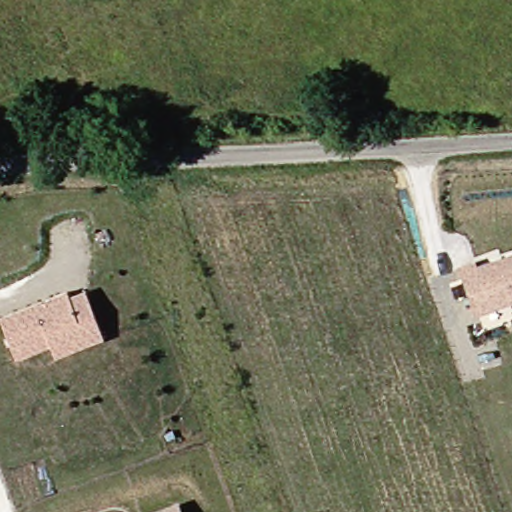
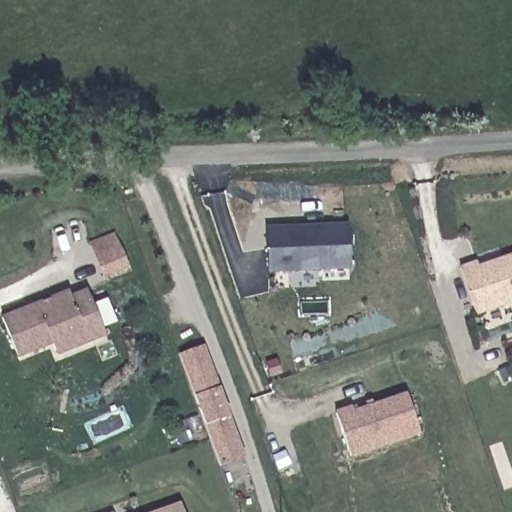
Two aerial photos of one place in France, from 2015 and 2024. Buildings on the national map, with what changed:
new [(312,228),(351,226),(352,269),(273,272),(271,229),(297,228),(312,228)]
new [(109,279),(100,259),(95,245),(118,235),(124,250),(133,270),(109,279)]
unchanged [(462,271),(478,266),(480,270),(512,259),(512,306),(478,317),(462,271)]
unchanged [(16,354),(3,314),(44,299),(51,297),(70,290),(73,296),(89,290),(104,337),(88,343),(55,354),(51,342),(16,354)]
new [(207,346),(247,459),(223,468),(183,354),(207,346)]
new [(354,404),(356,409),(409,390),(422,428),(352,452),(338,409),(354,404)]
unchanged [(182,512),(178,512),(182,511),(182,512)]

